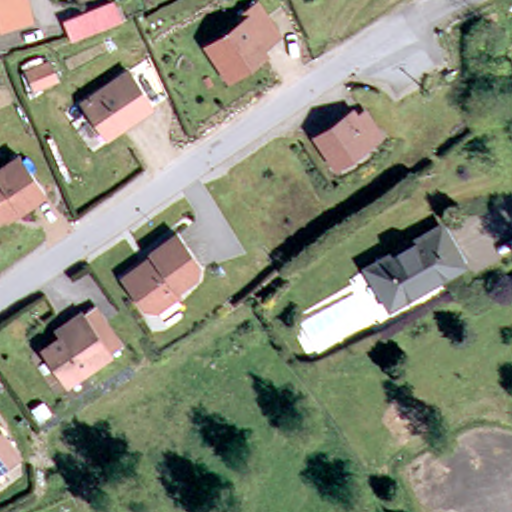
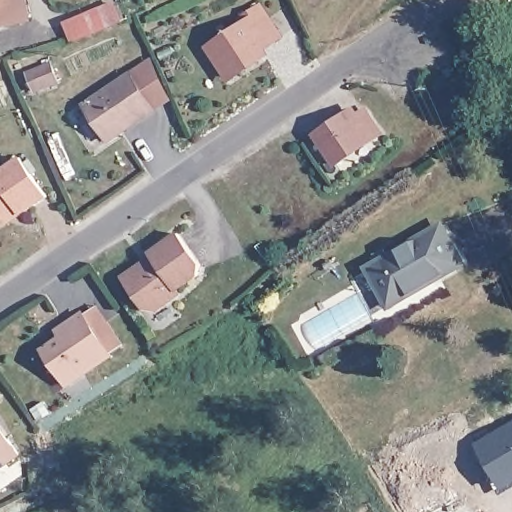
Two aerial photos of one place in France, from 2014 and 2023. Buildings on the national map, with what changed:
unchanged [(0,28),(0,0),(18,0),(23,22),(0,28)]
unchanged [(122,20),(82,36),(74,39),(67,23),(115,3),(122,20)]
unchanged [(210,52),(243,28),(240,22),(258,10),(280,39),(262,52),(265,57),(230,80),(210,52)]
unchanged [(25,71),(48,62),(56,80),(33,89),(25,71)]
unchanged [(80,105),(125,72),(150,107),(105,140),(80,105)]
unchanged [(367,116),(382,136),(338,165),(320,137),(355,114),(359,121),(367,116)]
unchanged [(2,222),(0,224),(0,174),(17,162),(43,200),(19,217),(5,227),(2,222)]
unchanged [(364,266),(440,223),(457,256),(427,274),(429,277),(385,303),(364,266)]
unchanged [(119,280),(148,257),(147,255),(174,235),(197,264),(193,277),(174,290),(177,295),(154,311),(142,310),(119,280)]
unchanged [(63,387),(40,351),(61,337),(57,329),(63,324),(80,314),(80,316),(93,307),(120,347),(107,356),(108,357),(63,387)]
new [(512,427),(512,483),(501,489),(495,492),(491,483),(495,480),(477,448),(512,427)]
unchanged [(8,441),(17,455),(0,467),(0,439),(8,441)]

